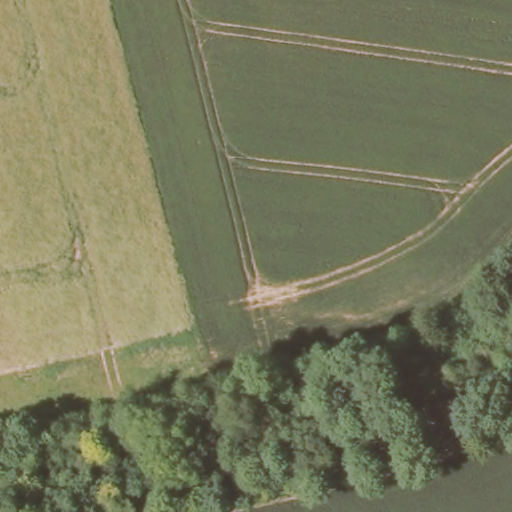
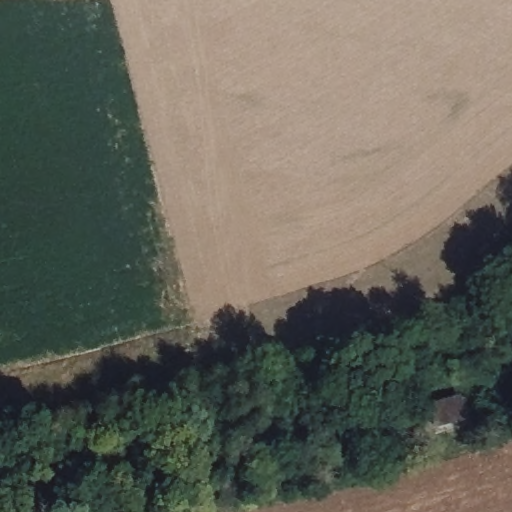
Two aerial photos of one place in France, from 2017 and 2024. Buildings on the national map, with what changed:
unchanged [(421,412),(467,400),(472,422),(449,426),(450,435),(425,441),(421,412)]

